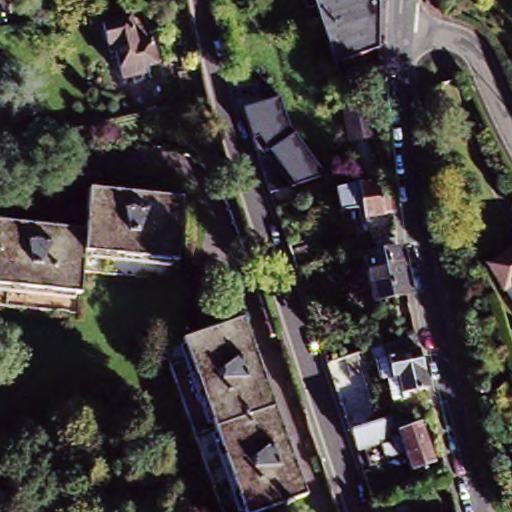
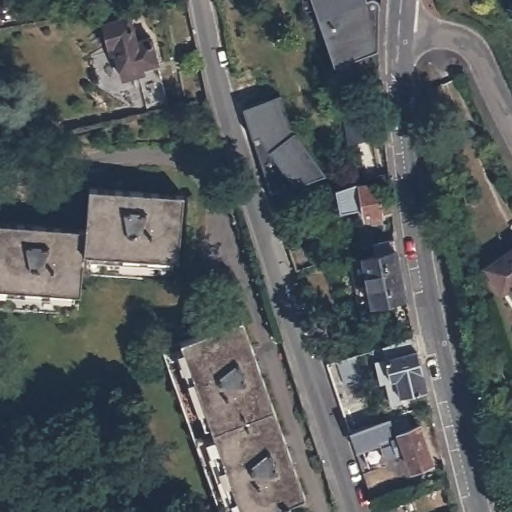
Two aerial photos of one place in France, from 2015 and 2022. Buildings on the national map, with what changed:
unchanged [(351,64),(347,66),(338,70),(316,10),(304,15),(299,0),(321,0),(326,8),(330,6),(351,64)]
unchanged [(351,64),(330,6),(326,8),(321,0),(366,0),(367,2),(370,0),(375,0),(376,0),(376,1),(377,1),(377,2),(378,2),(379,2),(379,3),(379,4),(379,5),(379,6),(379,7),(380,50),(359,60),(351,64)]
unchanged [(129,17),(133,42),(149,39),(154,66),(139,68),(140,72),(119,77),(112,43),(105,45),(101,23),(129,17)]
unchanged [(296,131),(328,178),(300,194),(262,136),(253,139),(245,109),(281,97),(296,131)]
unchanged [(6,145),(0,118),(0,113),(28,107),(35,138),(6,145)]
unchanged [(372,109),(374,119),(377,141),(369,142),(354,144),(349,112),(372,109)]
unchanged [(367,227),(366,220),(360,220),(359,212),(336,215),(334,192),(336,192),(342,189),(357,185),(357,187),(374,185),(375,202),(384,202),(386,218),(386,226),(367,227)]
unchanged [(77,292),(0,286),(0,224),(84,231),(87,190),(182,197),(177,259),(81,251),(77,292)]
unchanged [(308,242),(313,261),(292,267),(286,250),(308,242)]
unchanged [(368,308),(361,263),(373,261),(371,251),(376,249),(392,245),(394,257),(402,302),(368,308)]
unchanged [(352,256),(350,248),(355,247),(357,255),(352,256)]
unchanged [(512,253),(512,290),(509,286),(504,290),(488,269),(512,253)]
unchanged [(0,313),(0,286),(77,292),(79,317),(0,313)]
unchanged [(287,504),(288,507),(282,508),(281,506),(264,512),(224,512),(176,382),(189,377),(178,345),(242,322),(304,498),(287,504)]
unchanged [(402,404),(392,407),(386,382),(382,383),(377,362),(387,360),(383,347),(415,337),(418,353),(428,392),(407,397),(408,402),(402,404)]
unchanged [(172,383),(160,351),(178,345),(189,377),(176,382),(224,512),(217,512),(172,383)]
unchanged [(430,447),(435,462),(414,469),(407,451),(396,455),(395,450),(387,452),(384,442),(358,449),(352,429),(329,364),(360,355),(383,420),(392,417),(409,412),(414,427),(422,424),(428,441),(430,447)]
unchanged [(412,495),(417,512),(373,512),(372,508),(412,495)]

